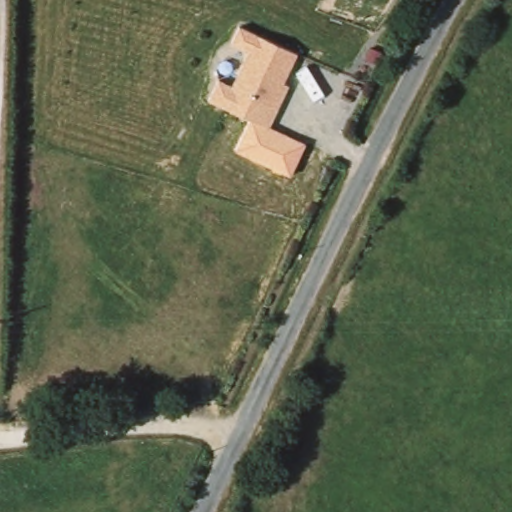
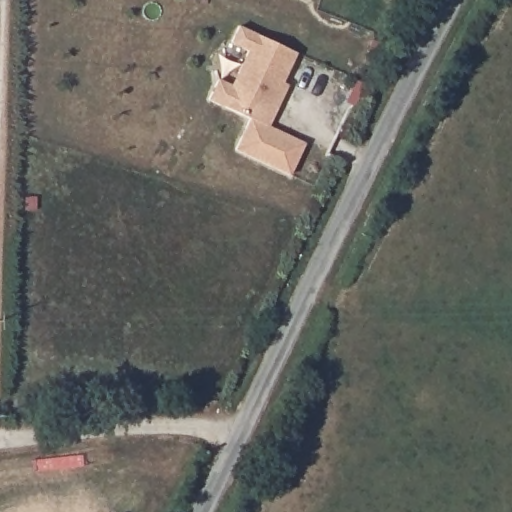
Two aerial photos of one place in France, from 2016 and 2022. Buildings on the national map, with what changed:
unchanged [(208,101),(217,79),(233,85),(246,50),(231,44),(238,26),(297,53),(283,83),(289,85),(270,128),(208,101)]
unchanged [(270,128),(305,144),(290,177),(235,151),(250,119),(270,128)]

